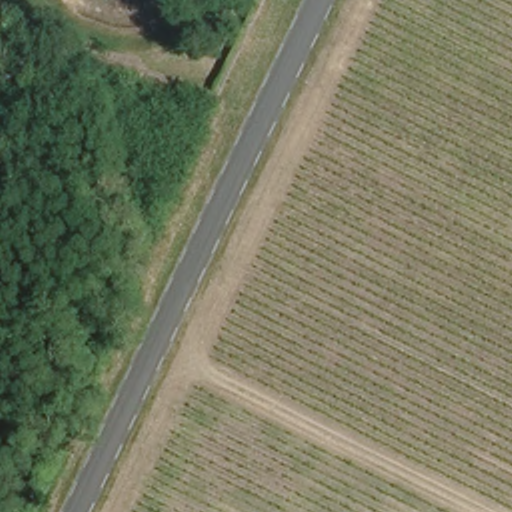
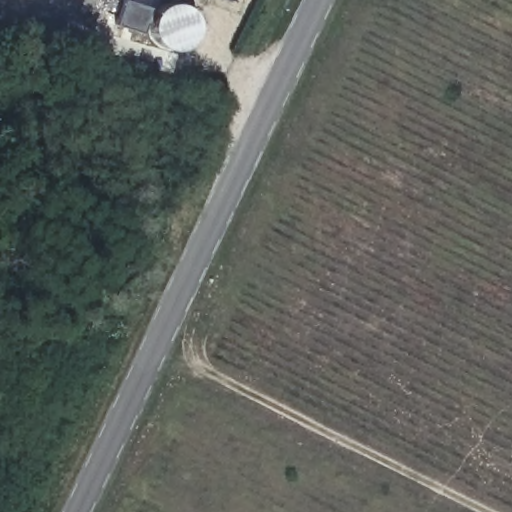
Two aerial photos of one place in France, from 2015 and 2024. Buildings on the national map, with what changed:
new [(116,24),(124,0),(152,9),(164,3),(168,2),(174,2),(180,4),(185,7),(193,16),(194,21),(195,29),(193,36),(190,44),(185,50),(177,52),(166,50),(159,48),(153,44),(149,40),(146,34),(116,24)]

